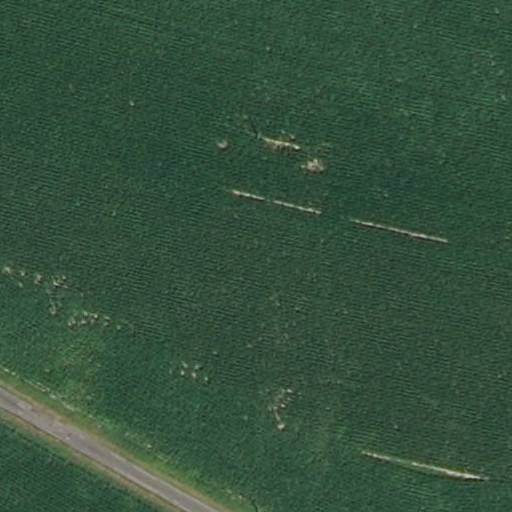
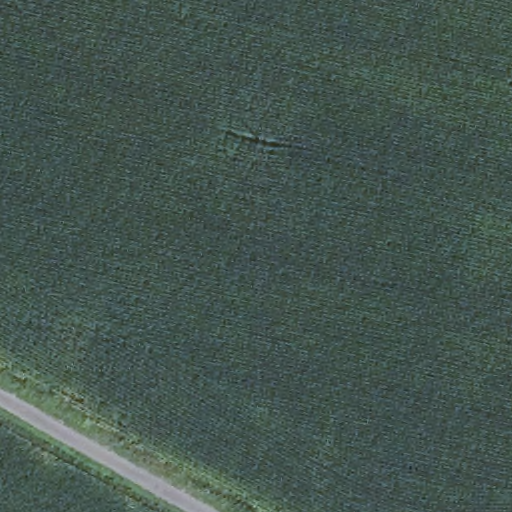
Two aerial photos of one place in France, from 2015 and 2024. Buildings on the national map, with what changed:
[]

